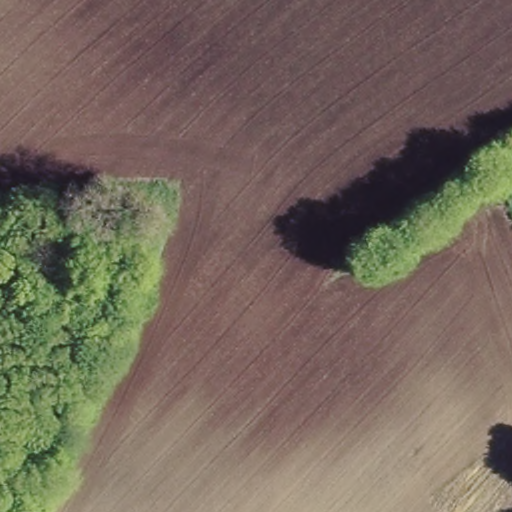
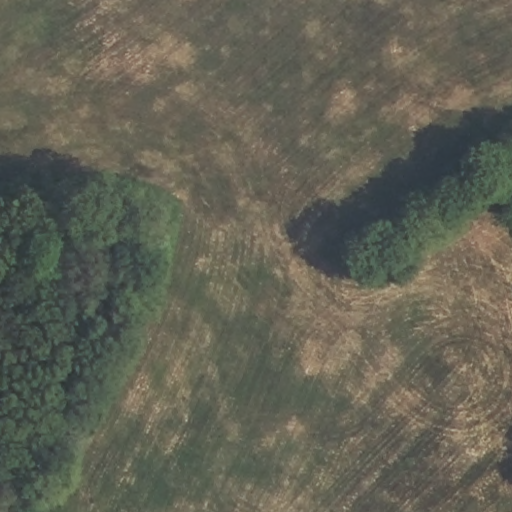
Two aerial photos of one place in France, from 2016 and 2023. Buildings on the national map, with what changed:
[]

